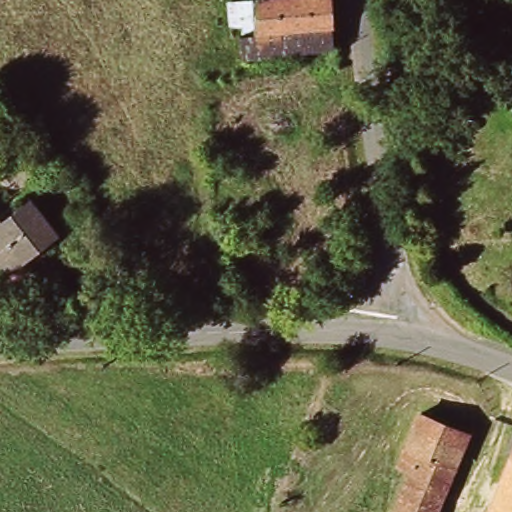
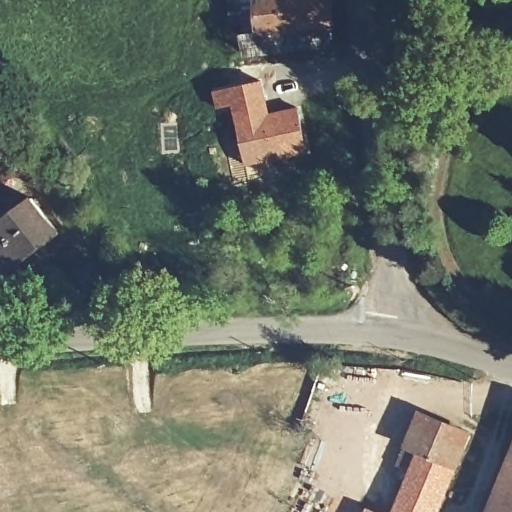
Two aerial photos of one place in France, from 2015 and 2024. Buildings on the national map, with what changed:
unchanged [(258,26),(232,25),(233,0),(333,0),(333,30),(332,51),(246,48),(245,33),(257,34),(258,26)]
new [(263,80),(271,112),(299,106),(311,159),(247,171),(232,107),(217,110),(212,91),(263,80)]
unchanged [(0,218),(32,193),(61,233),(9,272),(0,259),(0,218)]
unchanged [(456,464),(422,451),(408,445),(421,414),(467,434),(456,464)]
unchanged [(456,464),(439,507),(437,512),(399,512),(422,451),(456,464)]
unchanged [(511,512),(492,504),(511,457),(512,454),(512,512),(511,512)]
unchanged [(511,512),(488,512),(492,504),(511,512)]

